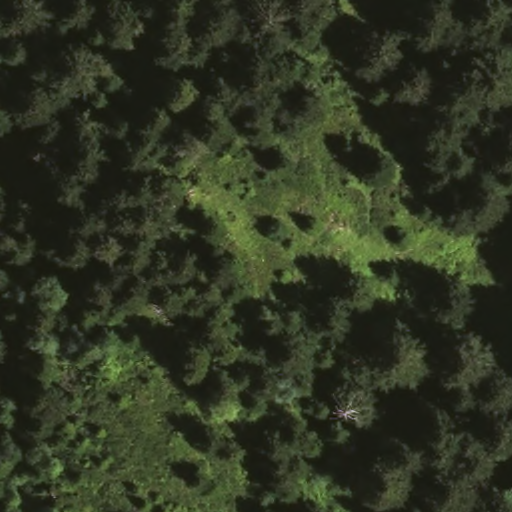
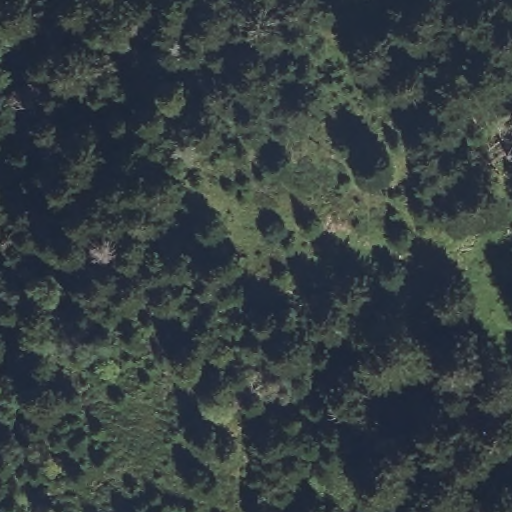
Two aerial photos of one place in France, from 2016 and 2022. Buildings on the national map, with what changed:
[]

